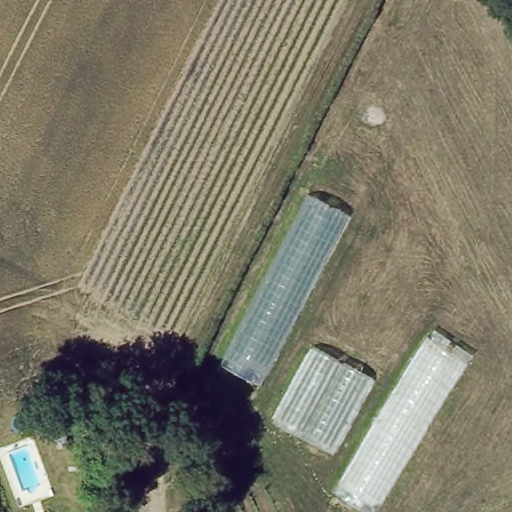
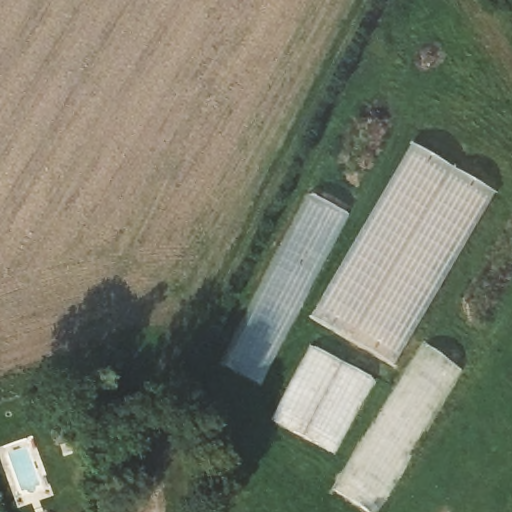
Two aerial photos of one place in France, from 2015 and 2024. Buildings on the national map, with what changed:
new [(311,317),(412,145),(496,195),(394,366),(311,317)]
unchanged [(353,214),(261,387),(220,366),(308,192),(353,214)]
unchanged [(469,361),(375,512),(365,512),(333,491),(426,334),(469,361)]
unchanged [(378,378),(339,457),(271,422),(313,343),(378,378)]

